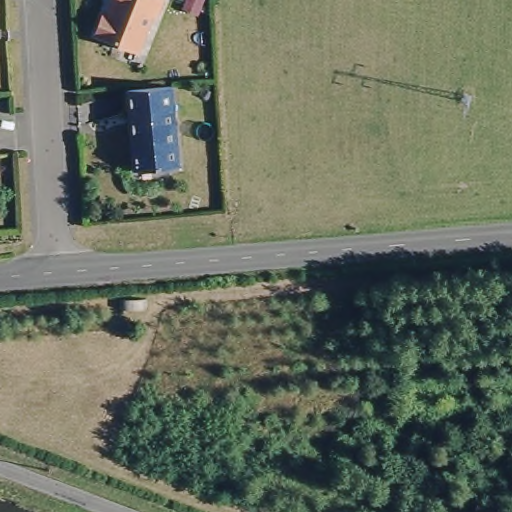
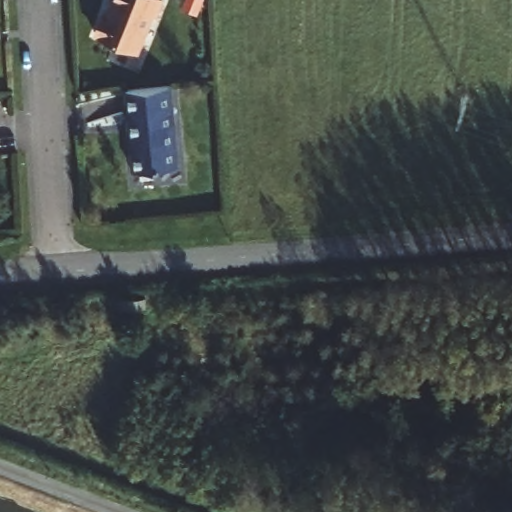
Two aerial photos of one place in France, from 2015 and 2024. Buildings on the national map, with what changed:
unchanged [(141,46),(100,29),(111,0),(159,0),(141,46)]
unchanged [(182,163),(136,167),(130,86),(175,81),(182,163)]

